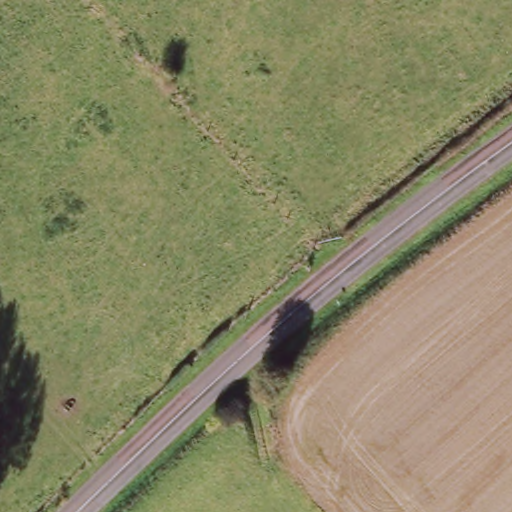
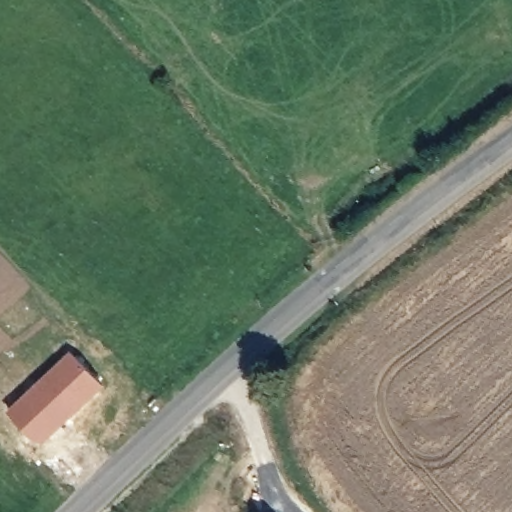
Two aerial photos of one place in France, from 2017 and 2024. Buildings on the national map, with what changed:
new [(105,387),(42,445),(9,411),(72,351),(105,387)]

